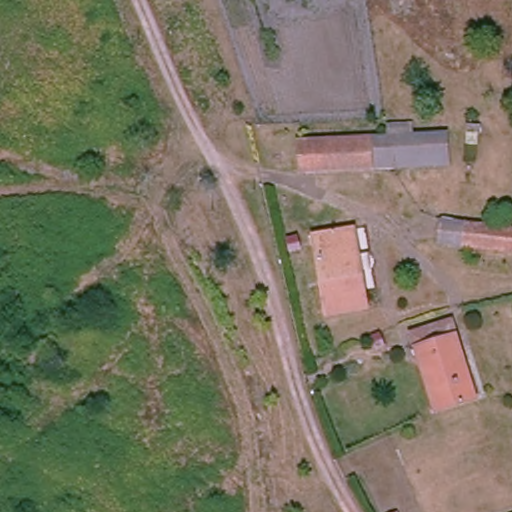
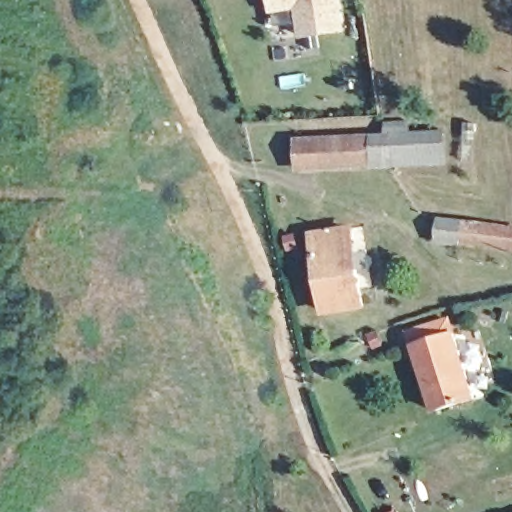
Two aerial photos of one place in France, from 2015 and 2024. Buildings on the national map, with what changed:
new [(349,32),(301,39),(296,10),(272,12),(270,0),(344,0),(349,32)]
unchanged [(380,133),(380,121),(407,119),(409,132),(444,128),(445,167),(293,175),(291,137),(380,133)]
unchanged [(512,225),(512,256),(430,246),(434,215),(512,225)]
unchanged [(312,235),(350,230),(354,252),(362,307),(323,314),(315,258),(312,235)]
unchanged [(468,392),(431,401),(413,337),(412,333),(450,322),(451,326),(468,392)]

